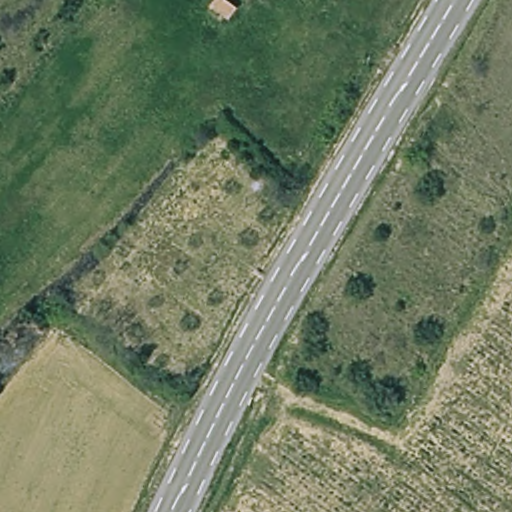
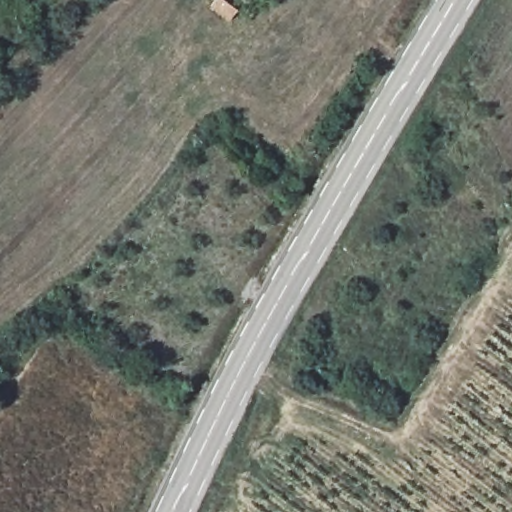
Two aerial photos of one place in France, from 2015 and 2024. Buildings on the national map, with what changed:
unchanged [(231,21),(208,5),(213,0),(228,0),(240,9),(231,21)]

